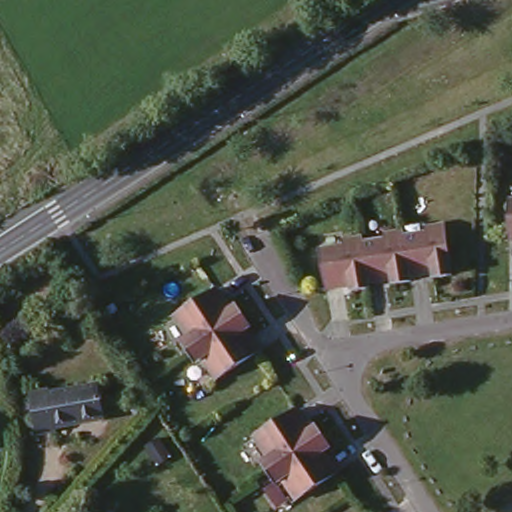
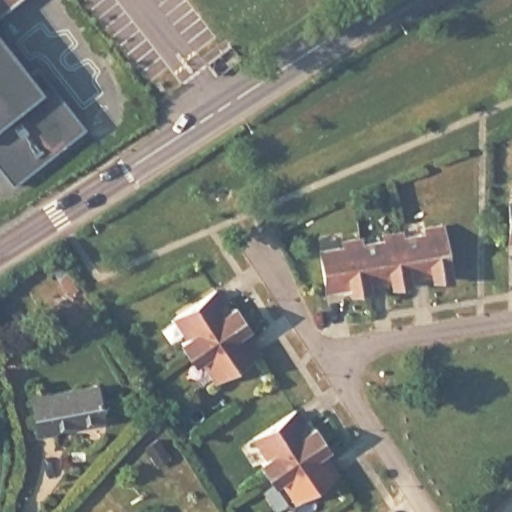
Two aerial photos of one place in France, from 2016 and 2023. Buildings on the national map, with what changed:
new [(0,8),(0,0),(11,0),(0,8)]
new [(9,191),(0,178),(0,22),(88,131),(9,191)]
unchanged [(508,239),(507,198),(512,198),(512,239),(508,239)]
unchanged [(453,273),(437,276),(436,271),(412,275),(413,280),(393,283),(392,278),(368,281),(369,287),(350,289),(350,282),(328,285),(322,247),(344,244),(343,236),(361,233),(362,240),(386,237),(385,231),(405,229),(406,234),(431,230),(431,224),(447,222),(453,273)]
unchanged [(211,287),(225,307),(230,304),(247,327),(242,331),(254,350),(214,379),(200,359),(193,363),(178,342),(186,337),(171,315),(211,287)]
unchanged [(98,382),(105,416),(56,424),(57,432),(38,435),(31,394),(98,382)]
unchanged [(293,407),(307,427),(312,423),(329,445),(323,450),(337,470),(297,499),(282,479),(276,484),(260,460),(267,456),(252,435),(293,407)]

